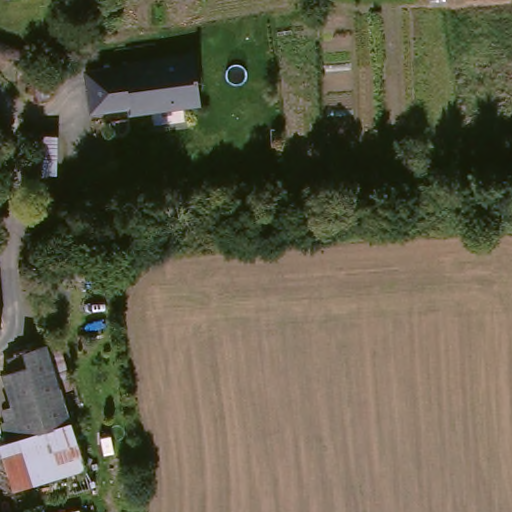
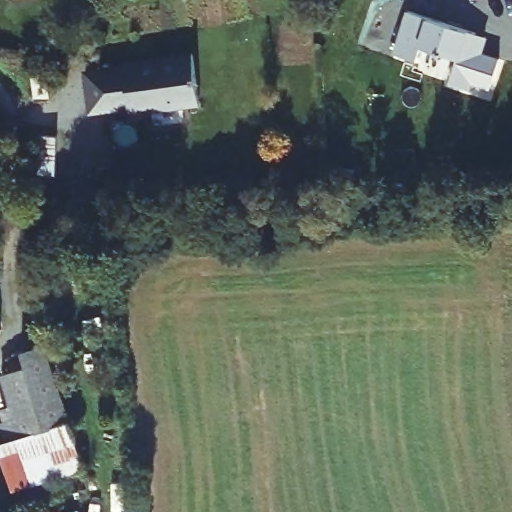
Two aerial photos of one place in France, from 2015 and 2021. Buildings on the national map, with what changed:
new [(426,17),(469,31),(488,36),(483,53),(500,58),(490,90),(473,83),(471,91),(450,84),(458,58),(420,46),(417,62),(392,54),(406,11),(426,17)]
unchanged [(122,64),(121,61),(190,52),(196,101),(179,104),(173,99),(152,102),(148,108),(128,111),(127,104),(87,110),(82,70),(122,64)]
unchanged [(21,102),(18,78),(40,77),(43,99),(21,102)]
unchanged [(0,374),(10,371),(6,357),(23,352),(46,345),(48,353),(59,350),(70,386),(59,389),(70,423),(6,443),(0,425),(0,423),(12,419),(0,374)]
unchanged [(70,423),(84,471),(13,493),(0,451),(0,445),(6,443),(70,423)]

